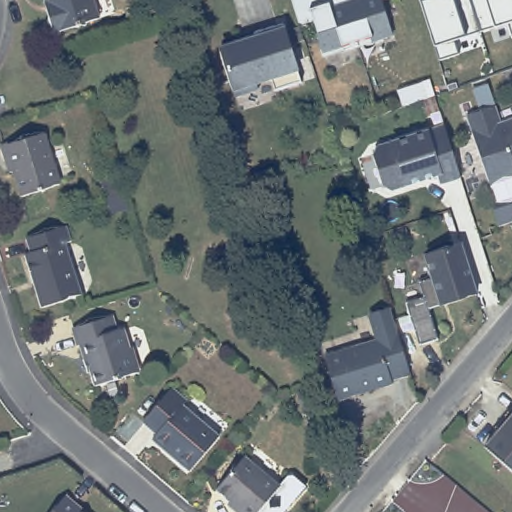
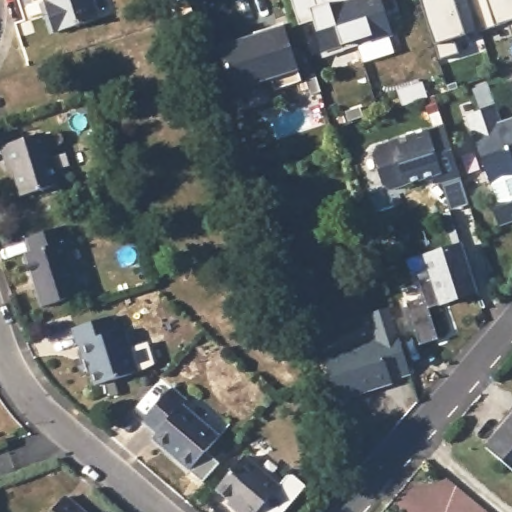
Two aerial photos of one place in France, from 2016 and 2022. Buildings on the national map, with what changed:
unchanged [(99,21),(54,36),(46,10),(50,9),(47,0),(92,0),(99,21)]
unchanged [(392,35),(373,41),(372,37),(357,41),(359,46),(343,51),(342,46),(324,52),(314,21),(299,26),(299,24),(291,0),(380,0),(392,35)]
unchanged [(480,29),(465,33),(454,37),(459,52),(439,58),(436,44),(422,0),(471,0),(480,29)]
unchanged [(509,21),(496,25),(480,29),(471,0),(512,0),(512,35),(509,21)]
unchanged [(302,82),(275,90),(270,76),(255,81),(258,88),(235,95),(221,50),(235,45),(235,43),(247,39),(248,42),(256,39),(254,33),(283,24),(302,82)]
unchanged [(402,105),(397,90),(431,78),(436,95),(402,105)]
unchanged [(472,88),(488,83),(494,104),(479,109),(472,88)]
unchanged [(499,120),(512,117),(512,221),(496,226),(491,210),(494,203),(496,202),(491,184),(489,185),(468,113),(494,104),(499,120)]
unchanged [(445,127),(459,174),(441,180),(439,171),(391,185),(384,181),(374,150),(378,142),(444,122),(445,127)]
unchanged [(49,137),(64,188),(24,200),(14,169),(9,170),(4,151),(49,137)]
unchanged [(361,162),(377,158),(384,181),(367,185),(361,162)]
unchanged [(31,258),(28,244),(67,231),(72,246),(66,247),(83,299),(43,311),(25,260),(31,258)]
unchanged [(461,248),(467,264),(476,295),(429,310),(438,341),(419,347),(406,305),(424,299),(419,284),(433,280),(427,259),(461,248)]
unchanged [(115,320),(120,335),(126,333),(132,352),(135,351),(143,377),(97,390),(88,363),(85,364),(80,349),(78,349),(73,332),(115,320)]
unchanged [(411,379),(392,385),(393,389),(339,406),(325,362),(377,345),(371,326),(392,320),(411,379)]
unchanged [(143,426),(174,391),(189,404),(184,409),(220,441),(189,476),(174,462),(153,444),(157,439),(143,426)]
unchanged [(487,448),(512,418),(512,470),(487,448)]
unchanged [(265,480),(274,470),(279,471),(292,482),(266,512),(243,512),(241,510),(239,512),(227,512),(218,503),(221,499),(203,484),(232,450),(265,480)]
unchanged [(84,512),(57,512),(69,498),(84,512)]

